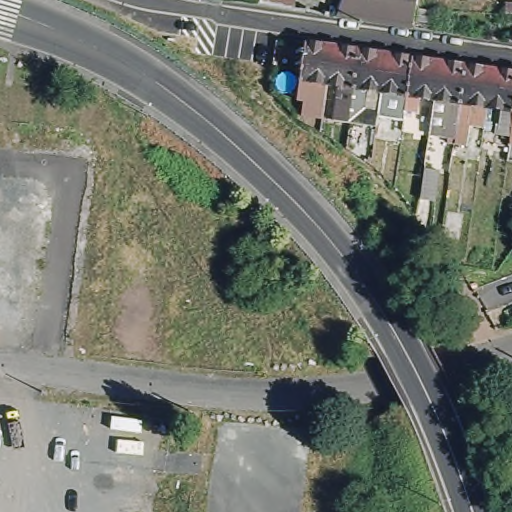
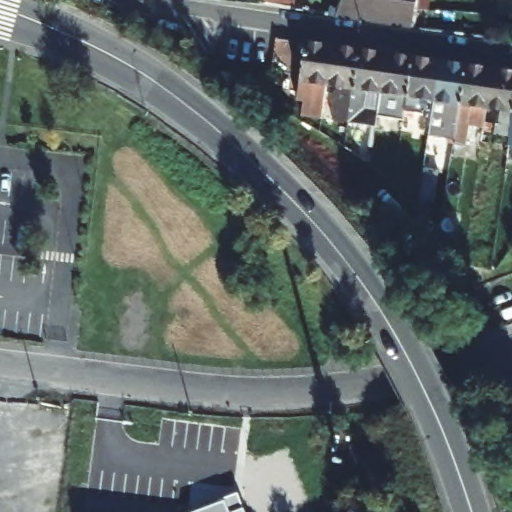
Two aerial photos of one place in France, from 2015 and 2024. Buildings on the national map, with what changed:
unchanged [(420,0),(416,27),(389,23),(338,16),(344,0),(420,0)]
unchanged [(333,84),(328,119),(328,120),(313,117),(314,109),(315,101),(303,100),(301,100),(309,41),(312,42),(338,46),(333,84)]
unchanged [(338,46),(366,50),(355,122),(338,120),(341,100),(344,101),(346,87),(333,84),(338,46)]
unchanged [(381,127),(355,122),(366,50),(392,54),(386,92),(381,127)]
unchanged [(391,127),(394,108),(397,109),(399,94),(386,92),(392,54),(418,57),(407,130),(391,127)]
unchanged [(418,57),(446,61),(440,100),(426,98),(424,112),(426,112),(424,132),(407,130),(418,57)]
unchanged [(470,65),(460,137),(435,135),(438,117),(440,100),(446,61),(470,65)]
unchanged [(460,137),(470,65),(499,69),(489,142),(460,137)]
unchanged [(499,69),(512,71),(512,145),(489,142),(499,69)]
unchanged [(440,174),(436,204),(421,201),(425,172),(440,174)]
new [(246,512),(190,512),(239,492),(246,512)]

